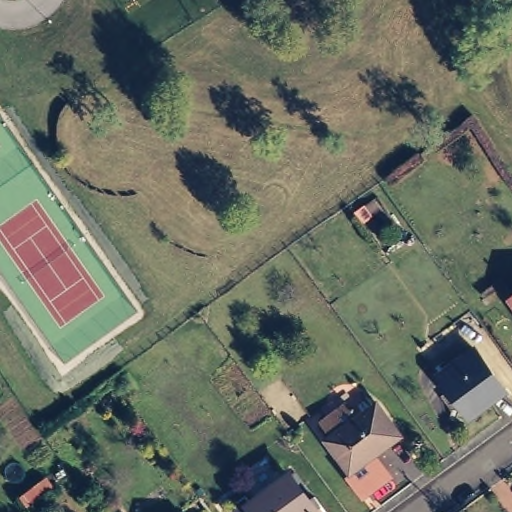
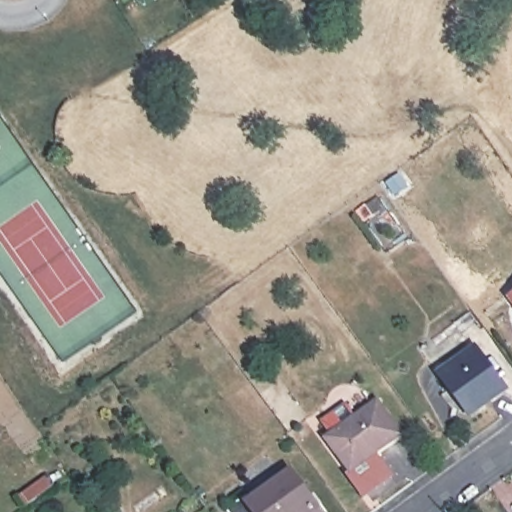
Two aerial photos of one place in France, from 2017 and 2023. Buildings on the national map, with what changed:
unchanged [(512,291),(512,295),(510,292),(512,291)]
unchanged [(477,347),(506,387),(471,413),(442,373),(477,347)]
unchanged [(375,400),(398,431),(349,469),(325,437),(375,400)]
unchanged [(252,500),(289,473),(318,512),(233,512),(227,503),(245,491),(252,500)]

